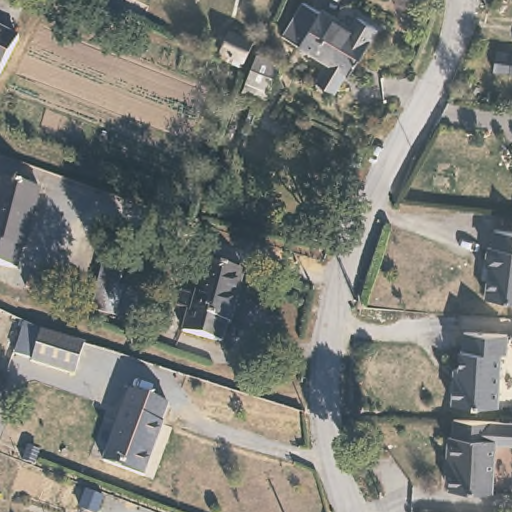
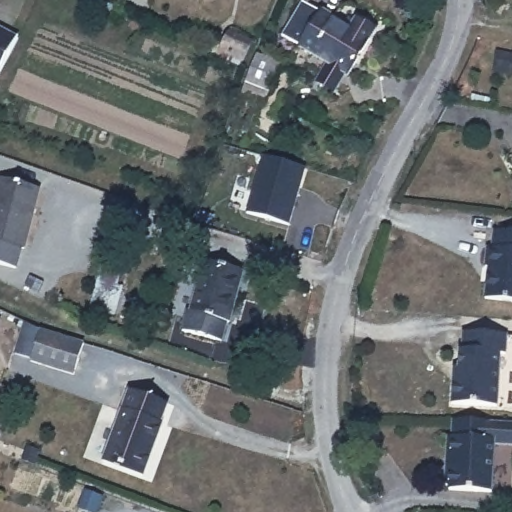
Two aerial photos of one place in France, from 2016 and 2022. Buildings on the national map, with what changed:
unchanged [(322,5),(352,25),(360,14),(376,25),(348,71),(345,69),(333,86),(316,76),(329,59),(283,30),(303,0),(310,0),(321,8),(322,5)]
unchanged [(0,79),(0,29),(21,41),(0,79)]
unchanged [(251,43),(242,65),(218,55),(228,33),(251,43)]
unchanged [(512,52),(512,74),(483,71),(485,48),(512,52)]
unchanged [(276,67),(266,95),(244,89),(250,58),(276,67)]
new [(259,159),(302,170),(287,228),(245,217),(259,159)]
unchanged [(24,250),(20,250),(15,271),(0,266),(0,186),(3,177),(41,187),(24,250)]
unchanged [(481,297),(485,265),(481,265),(483,245),(488,246),(490,229),(512,231),(512,300),(481,297)]
unchanged [(219,339),(182,334),(185,309),(191,309),(202,258),(243,267),(232,319),(225,318),(219,339)]
unchanged [(0,318),(0,312),(3,314),(0,318)]
unchanged [(81,334),(71,366),(30,354),(38,322),(81,334)]
unchanged [(455,378),(460,375),(461,348),(464,348),(464,330),(509,332),(508,352),(502,352),(499,404),(453,402),(455,378)]
unchanged [(164,396),(160,416),(164,417),(146,473),(102,459),(124,384),(164,396)]
unchanged [(496,419),(512,420),(512,441),(499,441),(495,488),(452,486),(452,479),(446,479),(446,466),(452,466),(452,457),(448,456),(448,429),(455,429),(455,418),(496,419)]

